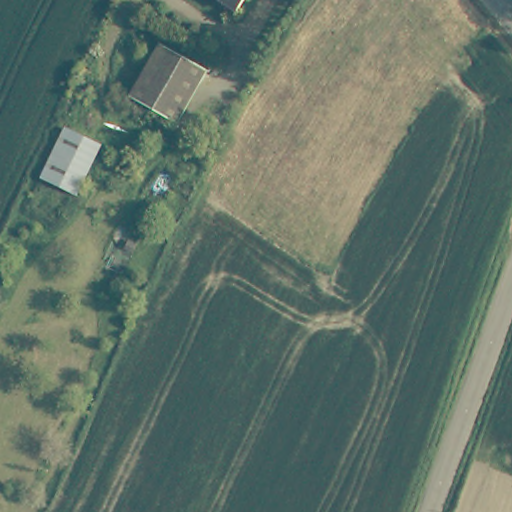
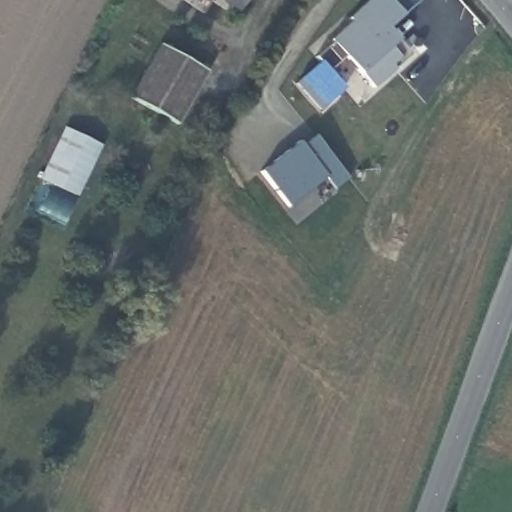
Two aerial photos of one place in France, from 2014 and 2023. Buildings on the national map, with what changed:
unchanged [(243,7),(233,0),(248,0),(243,7)]
new [(349,17),(369,0),(418,0),(402,15),(389,27),(399,39),(411,54),(373,90),(346,56),(340,62),(328,48),(335,44),(332,39),(349,17)]
unchanged [(209,75),(177,129),(130,101),(161,47),(209,75)]
unchanged [(71,129),(105,146),(80,196),(46,179),(71,129)]
new [(350,179),(336,190),(328,177),(290,208),(261,172),(300,142),(303,146),(315,136),(350,179)]

